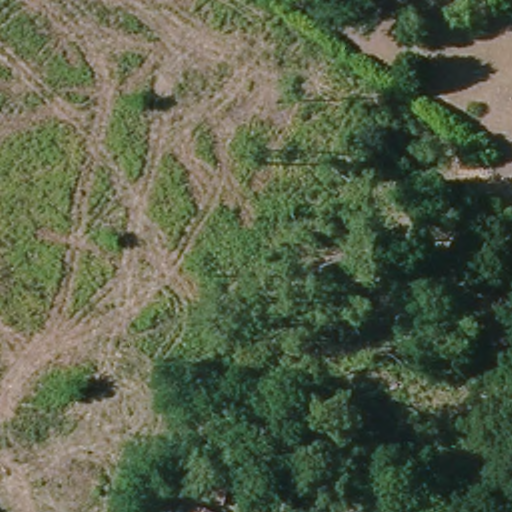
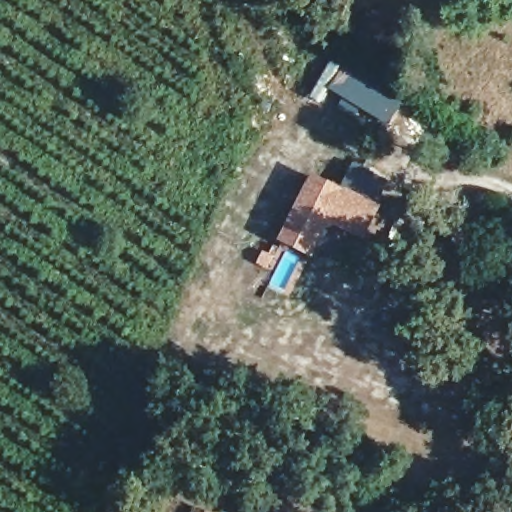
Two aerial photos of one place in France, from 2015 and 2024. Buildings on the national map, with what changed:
new [(386,120),(390,122),(388,126),(327,88),(318,103),(310,98),(332,63),(397,103),(386,120)]
new [(369,237),(341,224),(327,230),(312,257),(281,240),(315,174),(383,207),(369,237)]
unchanged [(450,512),(434,512),(435,509),(450,512)]

